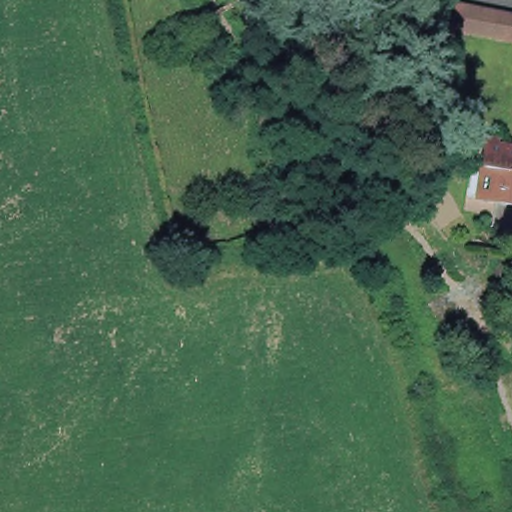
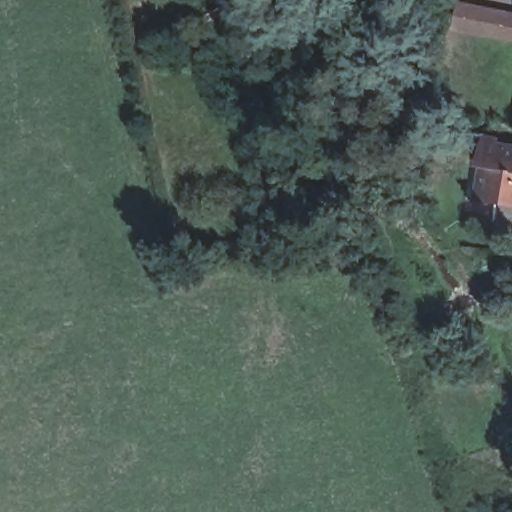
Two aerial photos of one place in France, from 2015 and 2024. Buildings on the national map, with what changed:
unchanged [(477,52),(462,49),(467,21),(484,25),(497,29),(512,32),(512,59),(507,58),(492,55),(477,52)]
unchanged [(512,204),(477,198),(482,172),(485,169),(480,161),(484,138),(512,143),(512,204)]

